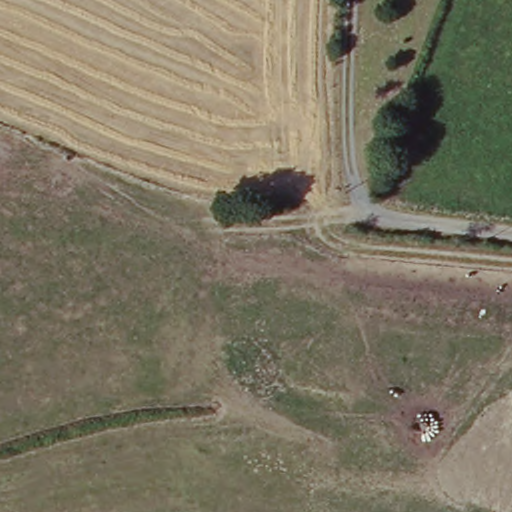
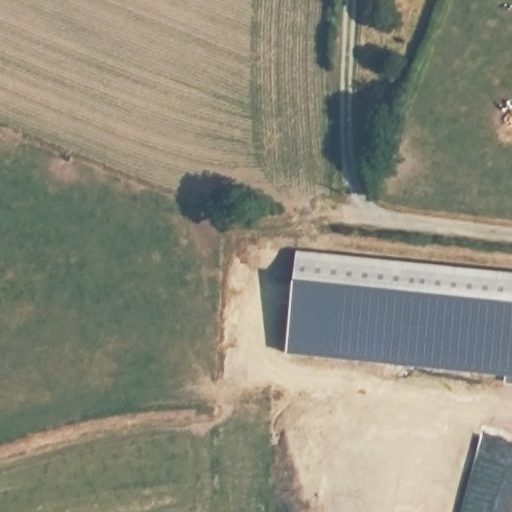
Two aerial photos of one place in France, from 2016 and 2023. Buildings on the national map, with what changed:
new [(512,273),(512,376),(288,352),(298,251),(512,273)]

